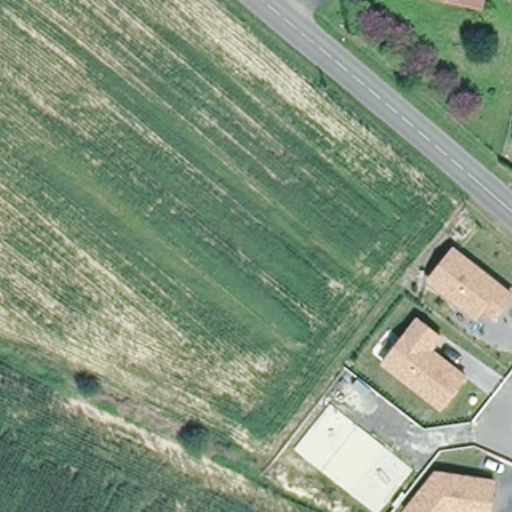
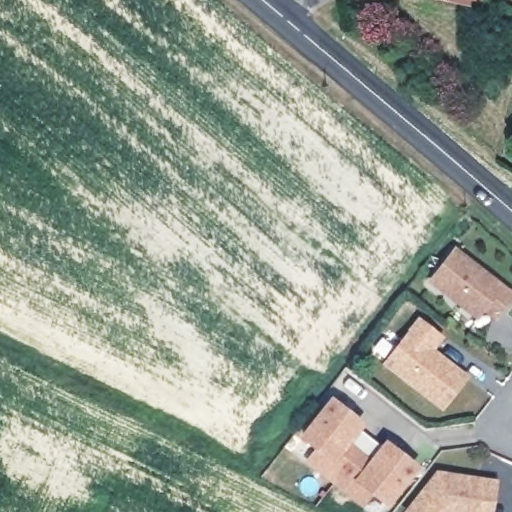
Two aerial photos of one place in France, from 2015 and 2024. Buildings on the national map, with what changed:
unchanged [(445,0),(476,0),(475,7),(445,0)]
unchanged [(453,251),(500,287),(511,296),(493,318),(482,309),(476,317),(430,281),(453,251)]
unchanged [(441,337),(431,350),(466,377),(442,408),(383,364),(417,320),(441,337)]
new [(363,508),(304,462),(313,451),(298,438),(332,397),(366,425),(361,432),(380,447),(385,440),(420,468),(387,508),(372,496),(363,508)]
unchanged [(437,474),(465,478),(496,482),(492,512),(408,512),(437,474)]

